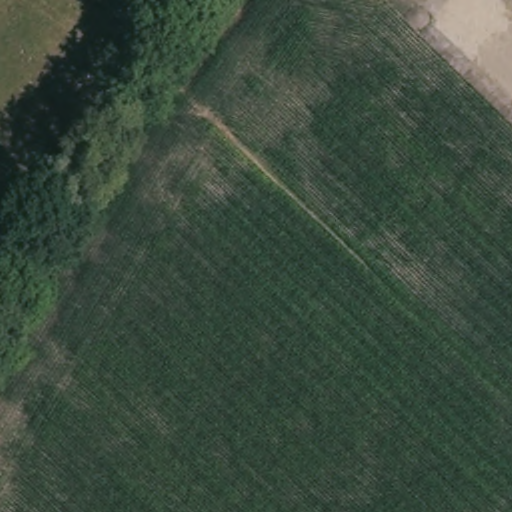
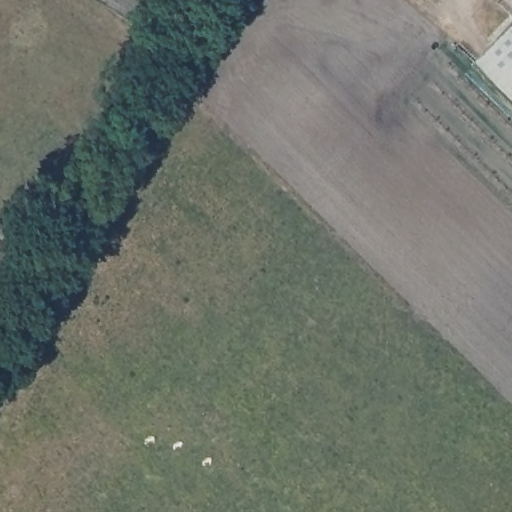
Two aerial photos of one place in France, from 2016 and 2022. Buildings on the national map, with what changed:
new [(473,61),(512,21),(512,99),(473,61)]

